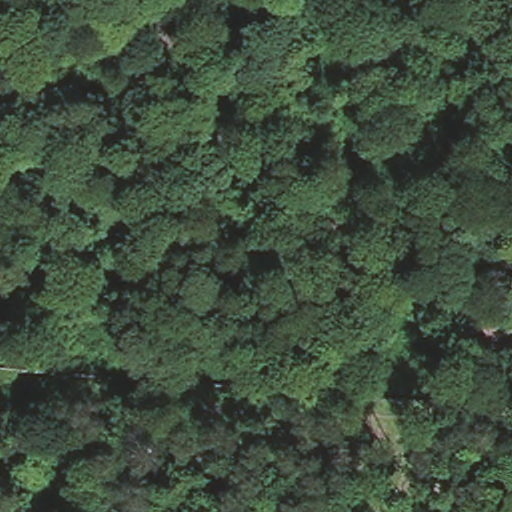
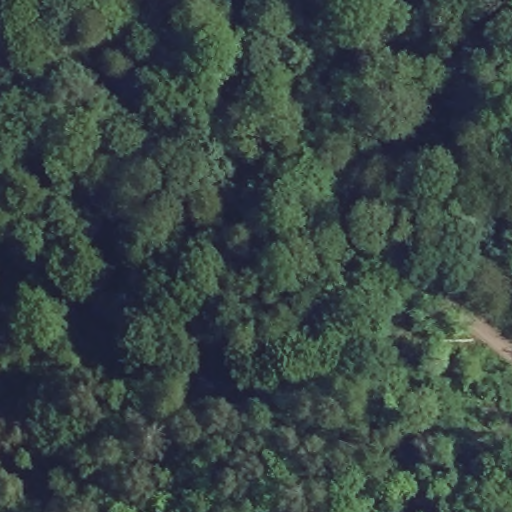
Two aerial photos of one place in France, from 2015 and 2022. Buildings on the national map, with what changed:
[]

